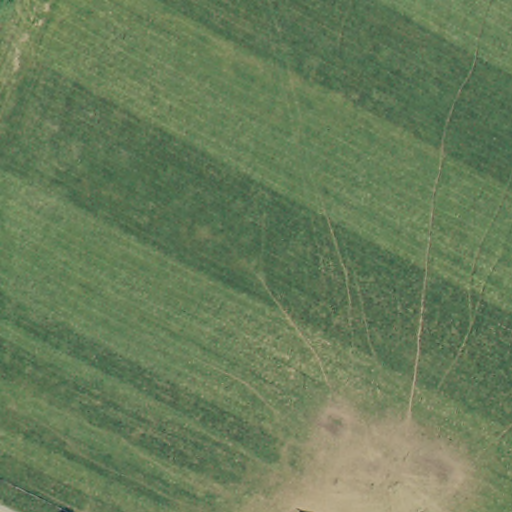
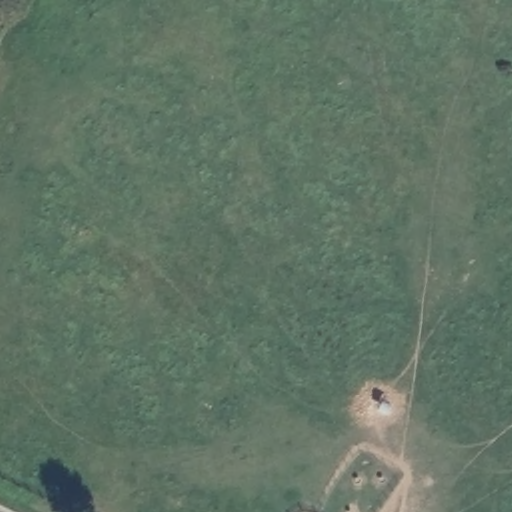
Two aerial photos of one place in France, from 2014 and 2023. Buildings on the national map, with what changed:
[]

